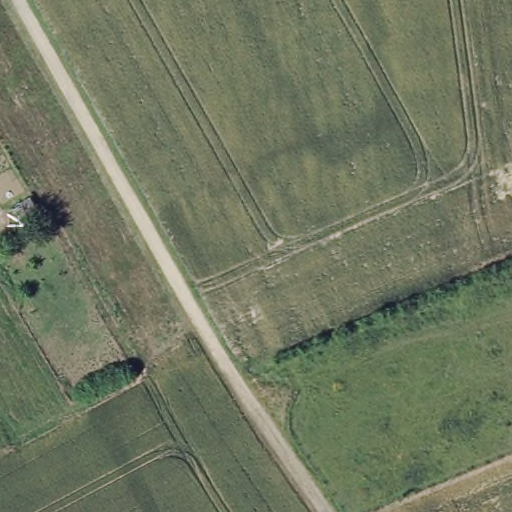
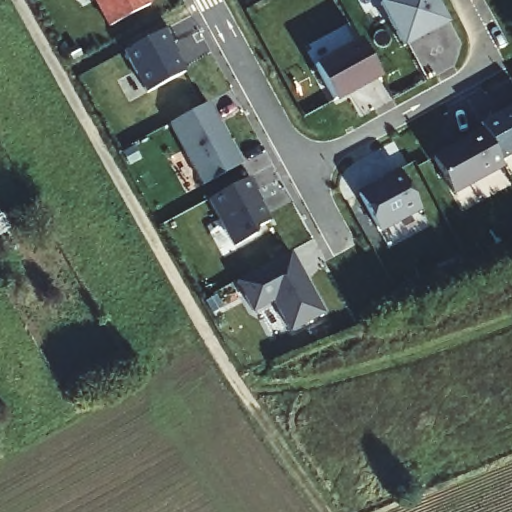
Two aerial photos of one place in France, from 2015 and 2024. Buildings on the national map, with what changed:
new [(92,0),(150,0),(153,4),(108,29),(92,0)]
new [(388,0),(435,0),(447,24),(403,48),(379,4),(388,0)]
new [(186,73),(144,94),(121,52),(162,32),(186,73)]
new [(383,78),(335,104),(313,65),(359,40),(383,78)]
new [(243,164),(200,188),(167,125),(208,103),(243,164)]
new [(499,163),(502,169),(454,195),(431,157),(479,130),(477,125),(512,105),(512,156),(499,163)]
new [(423,210),(380,235),(356,193),(397,170),(423,210)]
new [(255,192),(271,221),(258,228),(256,234),(232,249),(206,203),(248,179),(255,192)]
new [(290,332),(273,303),(254,313),(236,282),(266,266),(271,276),(289,267),(286,262),(293,258),(324,314),(290,332)]

